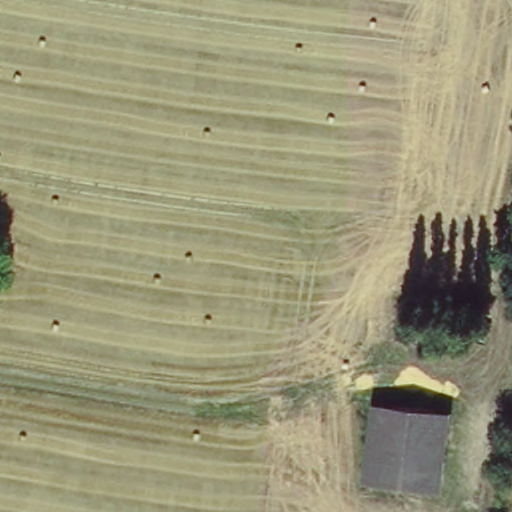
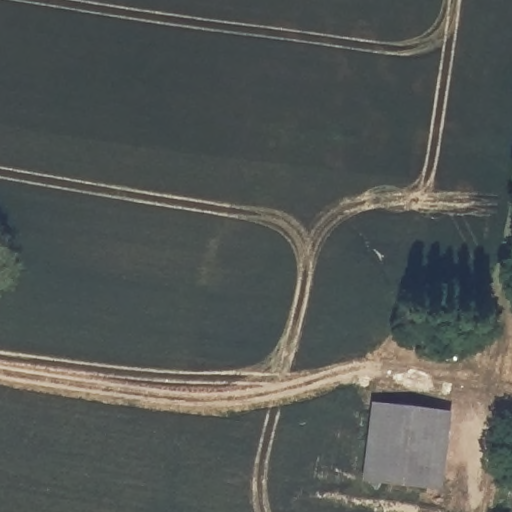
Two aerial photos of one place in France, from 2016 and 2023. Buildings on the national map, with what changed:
unchanged [(452,410),(442,488),(394,481),(376,478),(388,402),(404,403),(452,410)]

